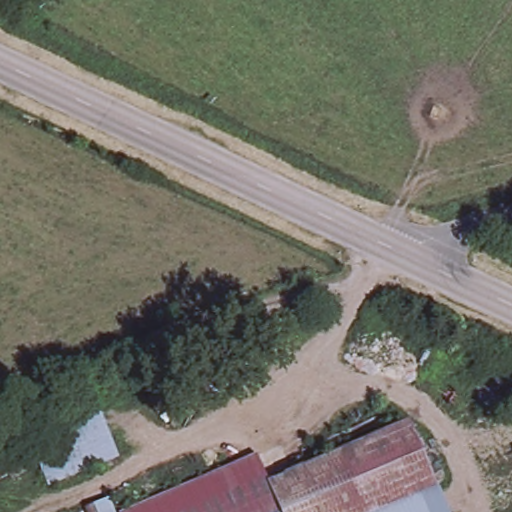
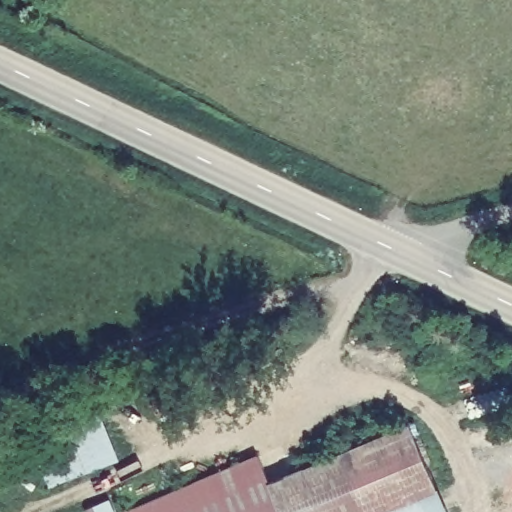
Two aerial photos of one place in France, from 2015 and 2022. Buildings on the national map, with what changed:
unchanged [(31,438),(96,408),(113,453),(50,486),(31,438)]
unchanged [(272,486),(409,427),(437,491),(389,512),(284,512),(274,490),(272,486)]
unchanged [(258,453),(272,486),(274,490),(224,512),(123,512),(258,453)]
unchanged [(274,490),(284,512),(224,512),(274,490)]
unchanged [(437,491),(446,512),(389,512),(437,491)]

